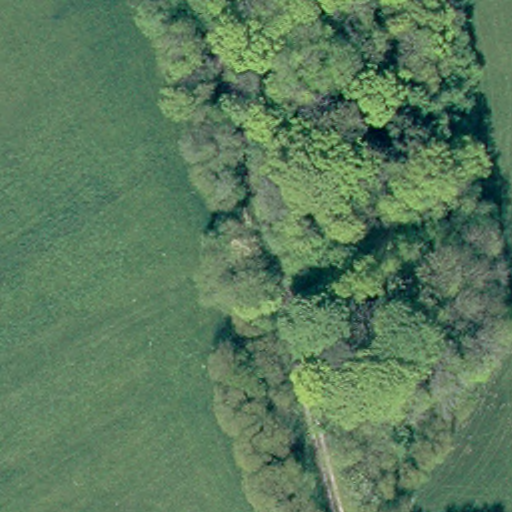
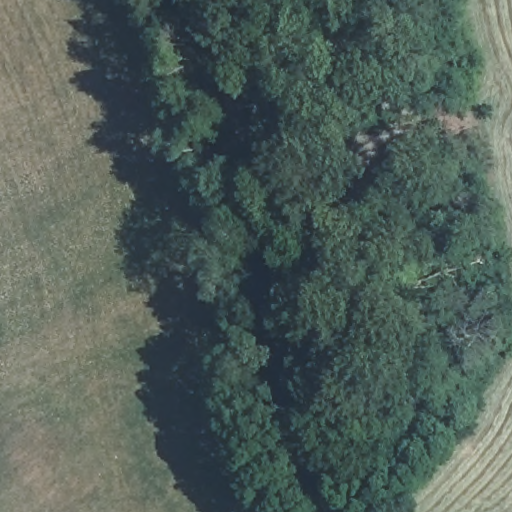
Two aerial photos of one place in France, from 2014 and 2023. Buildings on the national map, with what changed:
[]

